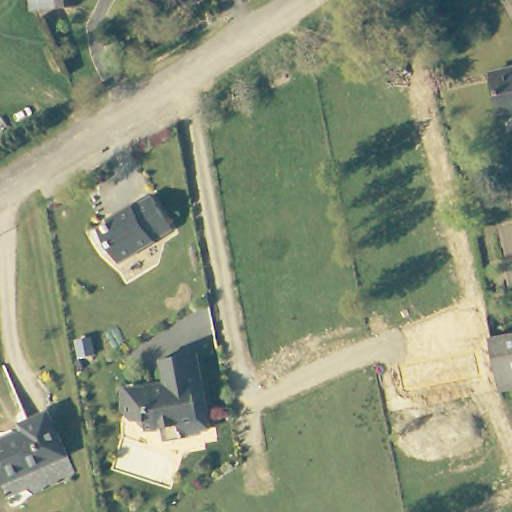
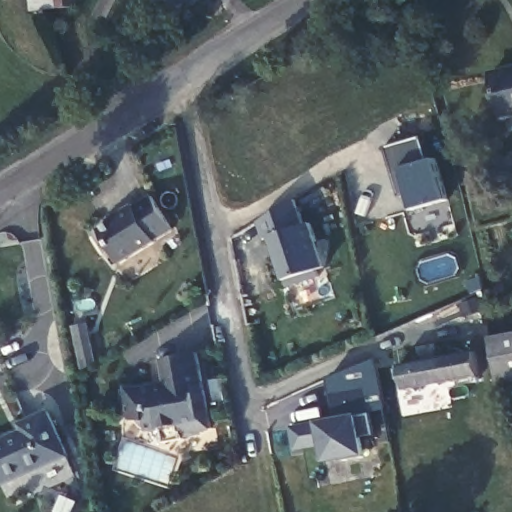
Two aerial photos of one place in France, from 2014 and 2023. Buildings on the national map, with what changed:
unchanged [(59,7),(54,7),(27,11),(26,0),(76,0),(77,6),(59,7)]
unchanged [(177,11),(167,0),(184,0),(187,2),(177,11)]
unchanged [(147,62),(133,71),(117,44),(131,36),(147,62)]
unchanged [(506,120),(497,76),(512,72),(512,118),(506,120)]
new [(422,137),(432,160),(436,159),(448,200),(412,209),(409,195),(401,196),(388,147),(422,137)]
unchanged [(172,227),(156,238),(157,240),(122,261),(112,246),(107,249),(97,234),(97,229),(119,215),(117,212),(135,201),(137,204),(152,193),(172,227)]
new [(307,222),(312,221),(326,267),(318,267),(321,278),(288,287),(286,280),(270,236),(261,220),(297,200),(307,222)]
unchanged [(508,392),(497,342),(512,339),(512,391),(508,392)]
unchanged [(211,421),(202,421),(202,425),(189,426),(189,432),(162,433),(161,421),(146,422),(145,412),(126,412),(126,382),(168,380),(165,350),(198,346),(211,421)]
unchanged [(482,376),(406,390),(401,363),(477,350),(482,376)]
new [(377,357),(387,410),(371,413),(375,433),(362,437),(367,455),(323,462),(321,447),(294,451),(290,426),(317,421),(339,416),(330,378),(377,357)]
unchanged [(7,484),(0,469),(0,442),(36,425),(34,420),(52,413),(55,412),(73,453),(7,484)]

